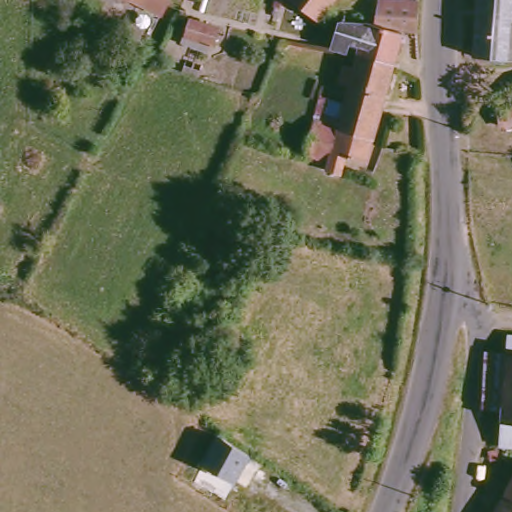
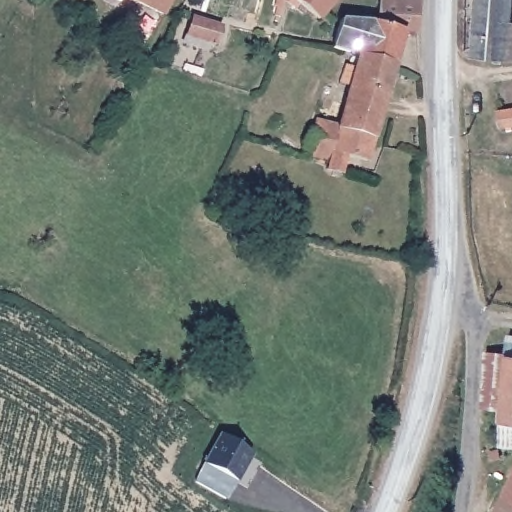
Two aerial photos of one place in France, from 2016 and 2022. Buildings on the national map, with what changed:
unchanged [(177,18),(137,0),(186,0),(177,18)]
unchanged [(322,19),(319,19),(292,0),(336,0),(322,19)]
unchanged [(424,22),(386,15),(388,0),(424,0),(424,22)]
unchanged [(475,55),(479,0),(512,0),(512,58),(475,55)]
unchanged [(212,17),(210,33),(182,25),(187,11),(212,17)]
unchanged [(367,46),(340,41),(345,20),(357,23),(357,20),(373,25),(375,19),(407,29),(399,57),(367,46)]
unchanged [(399,57),(390,90),(355,82),(364,54),(367,46),(399,57)]
unchanged [(335,158),(312,150),(323,113),(328,97),(348,102),(355,82),(390,90),(380,127),(374,150),(351,144),(344,161),(335,158)]
unchanged [(500,115),(512,112),(512,127),(502,129),(500,115)]
unchanged [(512,355),(512,450),(507,450),(508,411),(488,410),(490,354),(512,355)]
unchanged [(248,446),(237,470),(209,455),(222,429),(248,446)]
unchanged [(265,472),(277,480),(268,493),(257,484),(265,472)]
unchanged [(503,512),(512,494),(512,512),(503,512)]

